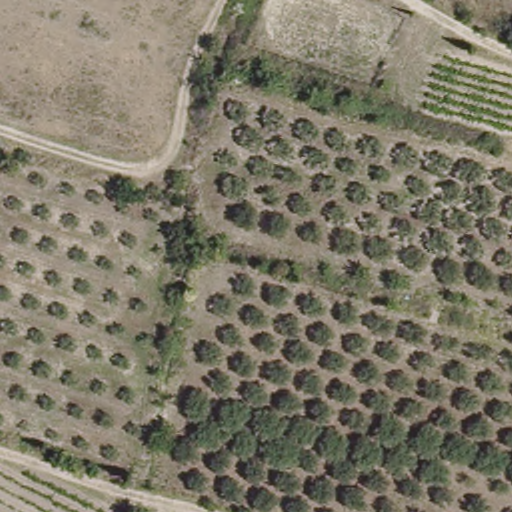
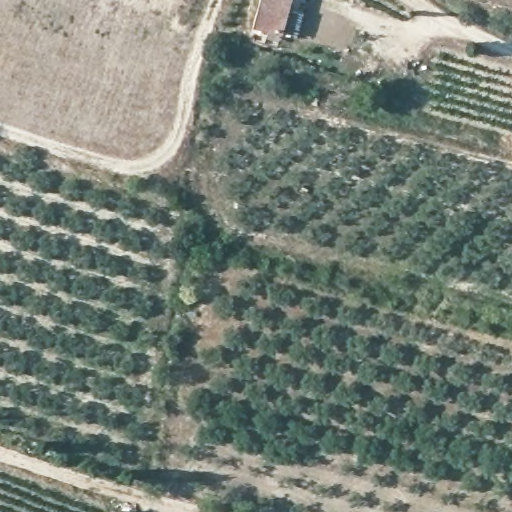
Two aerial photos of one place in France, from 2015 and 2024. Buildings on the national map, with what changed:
new [(260,0),(293,0),(283,34),(253,25),(260,0)]

